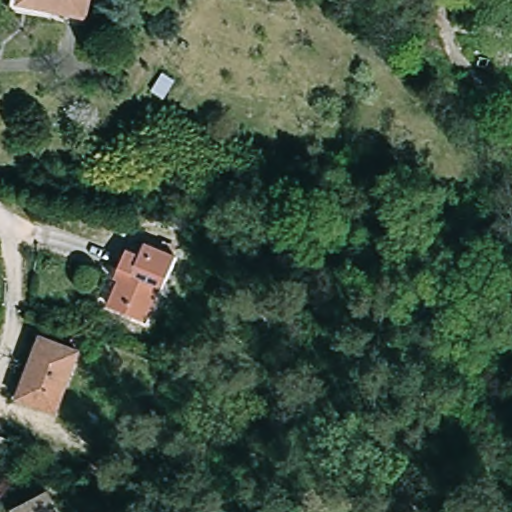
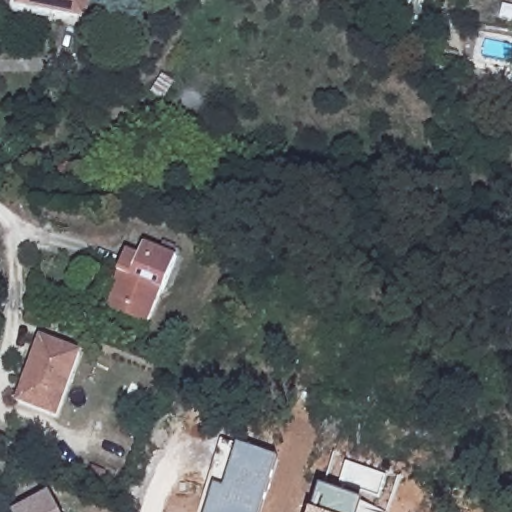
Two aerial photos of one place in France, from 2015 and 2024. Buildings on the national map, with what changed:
unchanged [(24,0),(93,0),(90,20),(37,11),(22,9),(23,0),(24,0)]
unchanged [(418,32),(400,27),(408,0),(424,0),(427,1),(418,32)]
unchanged [(463,23),(512,33),(512,43),(461,34),(463,23)]
unchanged [(490,59),(488,69),(476,66),(478,56),(490,59)]
unchanged [(117,295),(130,269),(126,266),(136,247),(149,254),(154,244),(185,260),(167,294),(165,292),(147,325),(127,315),(111,306),(117,295)]
unchanged [(80,352),(55,417),(17,403),(41,338),(80,352)]
new [(278,460),(260,512),(206,512),(216,486),(224,488),(237,447),(278,460)]
new [(322,490),(363,505),(360,512),(316,512),(322,490)]
unchanged [(52,497),(60,512),(25,512),(52,497)]

